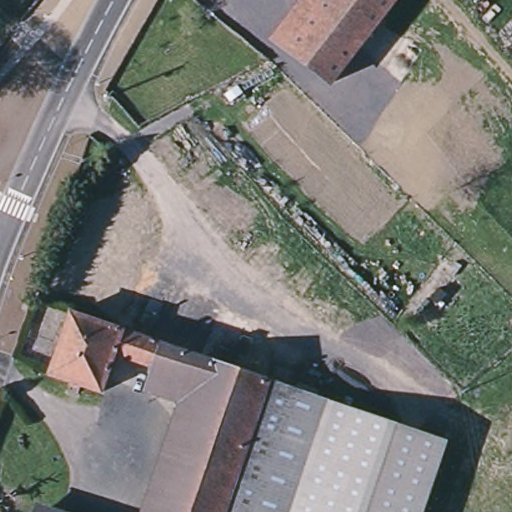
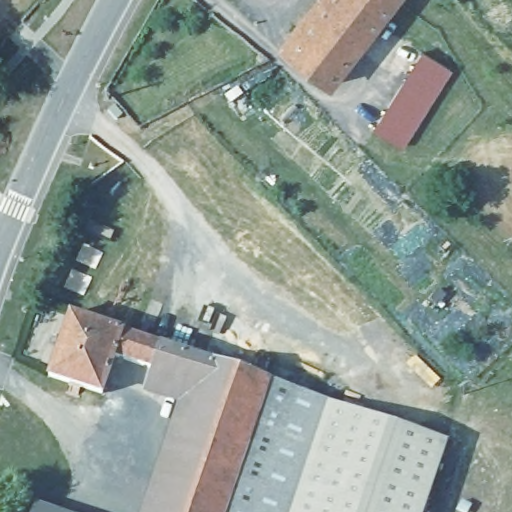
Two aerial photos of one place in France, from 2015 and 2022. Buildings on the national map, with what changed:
unchanged [(286,49),(327,0),(393,0),(329,82),(286,49)]
new [(452,69),(404,148),(374,129),(423,52),(452,69)]
unchanged [(102,393),(49,377),(71,313),(123,330),(115,354),(102,393)]
unchanged [(161,343),(153,367),(115,354),(123,330),(161,343)]
unchanged [(161,343),(213,361),(200,397),(149,379),(153,367),(161,343)]
unchanged [(213,361),(270,380),(225,512),(161,512),(200,397),(213,361)]
unchanged [(324,399),(286,512),(225,512),(270,380),(324,399)]
unchanged [(324,399),(450,443),(426,512),(286,512),(324,399)]

